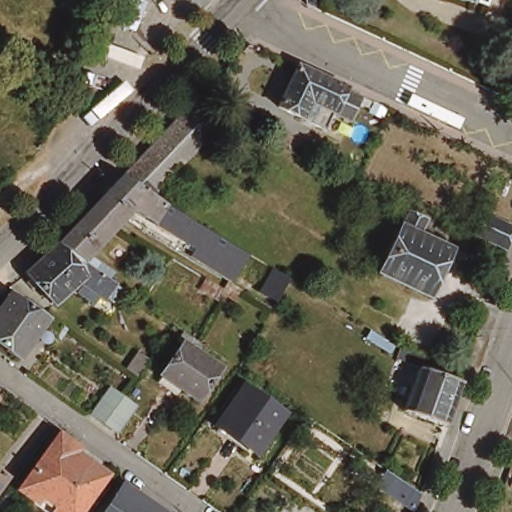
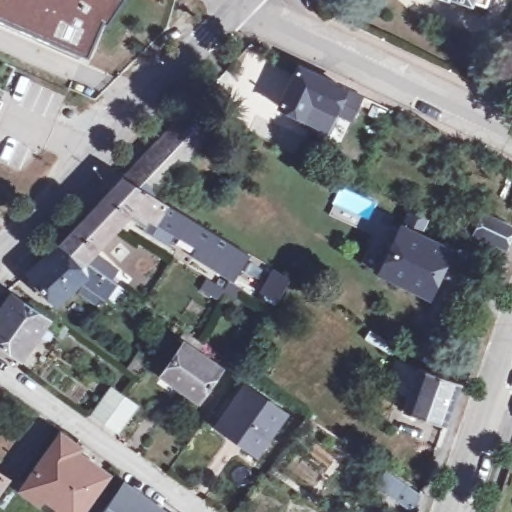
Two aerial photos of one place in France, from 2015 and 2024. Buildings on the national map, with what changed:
new [(104,21),(100,17),(85,53),(0,16),(0,0),(119,0),(104,21)]
unchanged [(487,6),(473,1),(472,5),(459,0),(490,0),(487,6)]
unchanged [(352,115),(335,106),(327,123),(280,100),(300,61),(364,91),(352,115)]
new [(0,100),(1,100),(0,104),(0,100)]
unchanged [(205,133),(148,194),(120,176),(185,110),(205,133)]
unchanged [(148,194),(185,216),(174,235),(130,209),(120,218),(113,225),(78,260),(55,245),(120,176),(148,194)]
unchanged [(378,272),(399,225),(404,227),(410,212),(426,220),(420,234),(452,249),(430,296),(378,272)]
unchanged [(506,247),(475,233),(484,214),(512,227),(512,232),(506,247)]
unchanged [(55,245),(78,260),(110,283),(101,298),(76,282),(65,290),(47,304),(21,273),(38,260),(55,245)]
unchanged [(207,278),(226,290),(230,282),(242,290),(236,300),(225,292),(215,308),(196,297),(207,278)]
unchanged [(47,320),(20,360),(0,346),(0,310),(10,295),(47,320)]
unchanged [(161,373),(185,343),(222,369),(197,401),(161,373)]
unchanged [(451,430),(410,415),(425,373),(403,365),(408,350),(438,368),(436,376),(466,385),(451,430)]
unchanged [(140,351),(151,360),(139,376),(127,367),(140,351)]
unchanged [(218,423),(246,386),(285,414),(258,453),(218,423)]
unchanged [(119,431),(106,422),(93,413),(110,388),(123,398),(136,407),(119,431)]
unchanged [(73,453),(105,475),(78,512),(53,512),(21,490),(59,436),(75,448),(73,453)]
unchanged [(375,485),(385,471),(417,493),(412,509),(375,485)]
unchanged [(0,483),(0,475),(3,477),(0,483)]
unchanged [(104,512),(125,484),(163,512),(104,512)]

